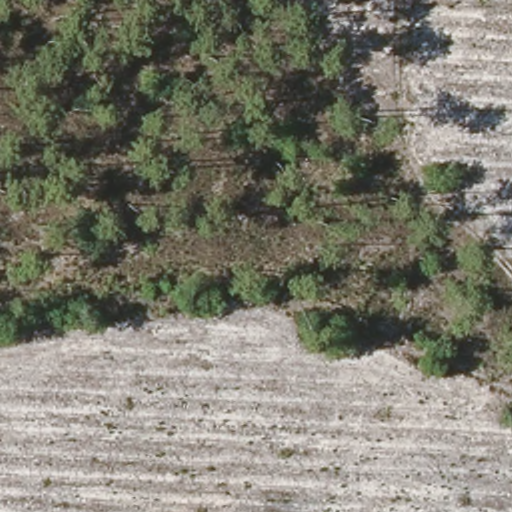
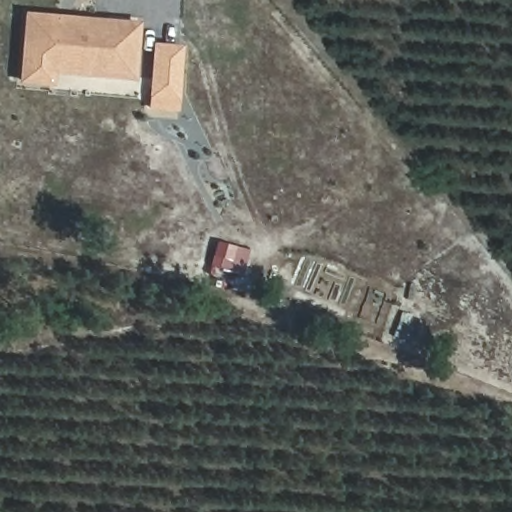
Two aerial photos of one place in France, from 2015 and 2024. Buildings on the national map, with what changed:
new [(18,81),(22,15),(55,18),(67,18),(104,21),(133,23),(133,28),(130,76),(74,72),(49,71),(47,83),(18,81)]
new [(184,50),(178,111),(149,109),(154,43),(182,45),(184,50)]

